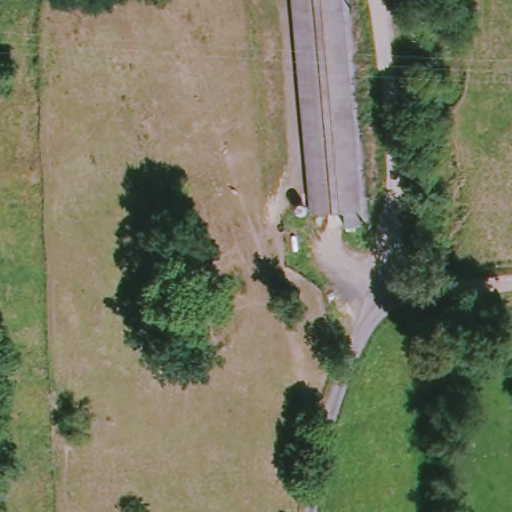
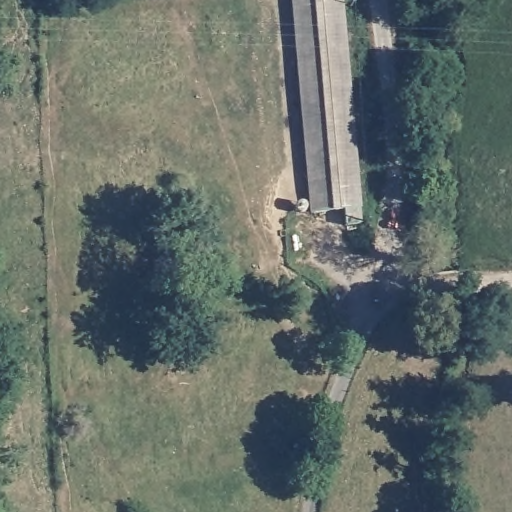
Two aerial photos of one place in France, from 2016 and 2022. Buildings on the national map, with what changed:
unchanged [(347,224),(346,209),(314,211),(296,0),(341,0),(359,207),(360,222),(347,224)]

